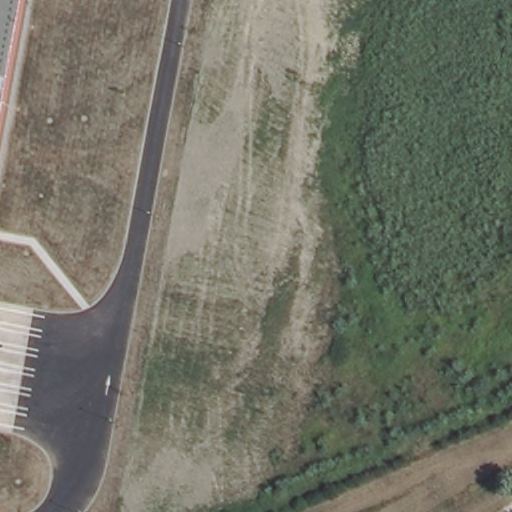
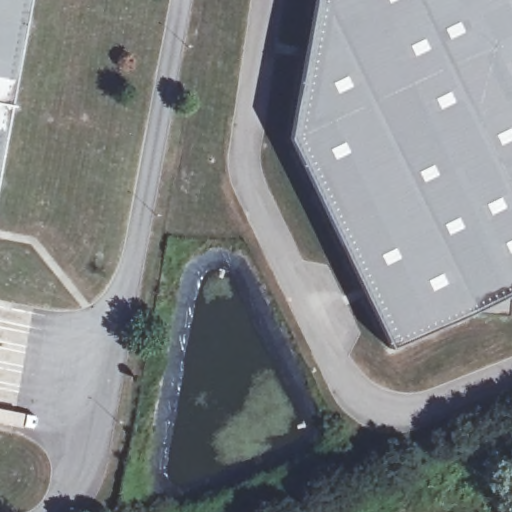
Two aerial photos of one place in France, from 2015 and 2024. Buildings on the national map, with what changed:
unchanged [(0,148),(0,0),(27,0),(0,148)]
new [(509,294),(509,316),(464,315),(389,348),(288,138),(313,0),(512,0),(512,295),(509,294)]

